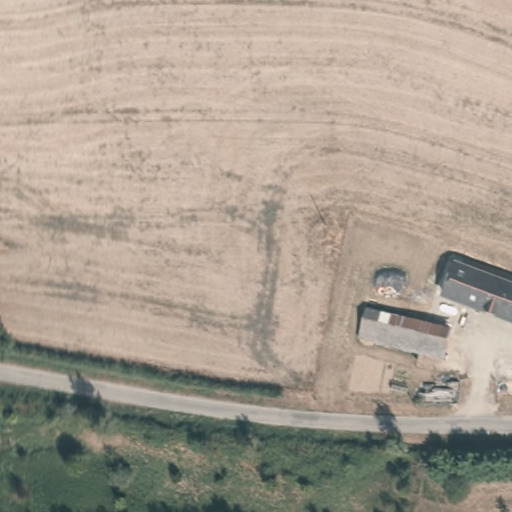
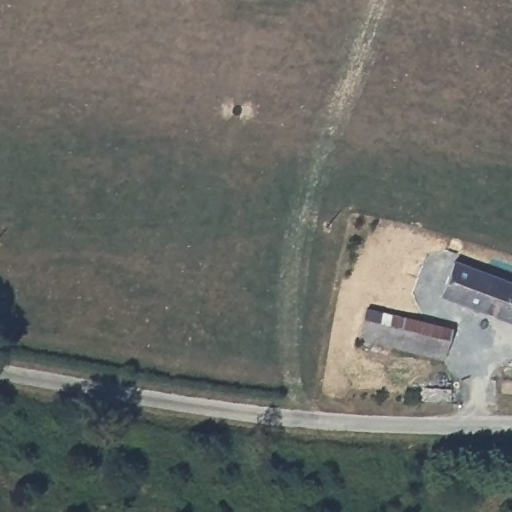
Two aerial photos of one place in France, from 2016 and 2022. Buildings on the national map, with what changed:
unchanged [(456,268),(512,288),(512,322),(445,298),(456,268)]
unchanged [(365,306),(454,327),(446,358),(357,337),(365,306)]

